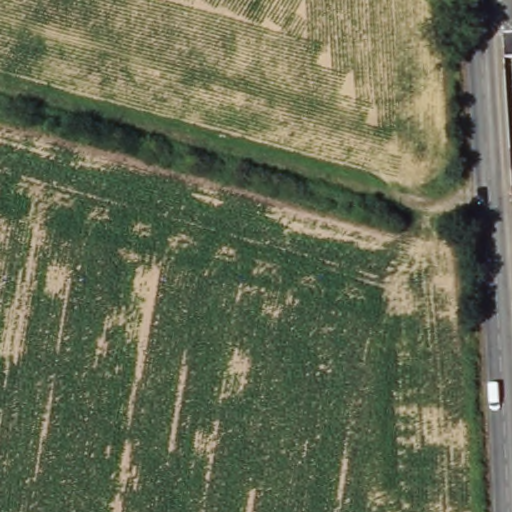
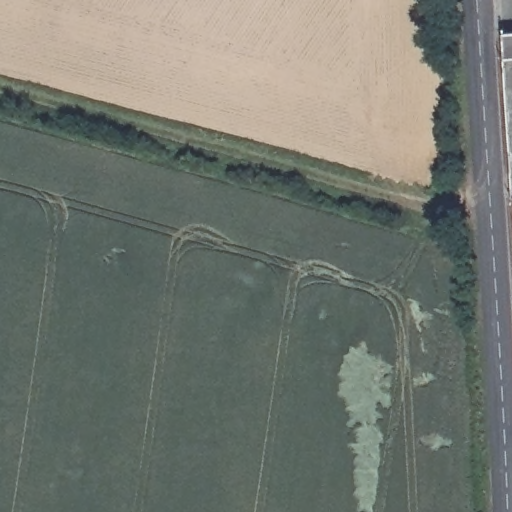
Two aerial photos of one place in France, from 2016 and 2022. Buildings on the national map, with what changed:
unchanged [(512,35),(512,150),(505,35),(512,35)]

